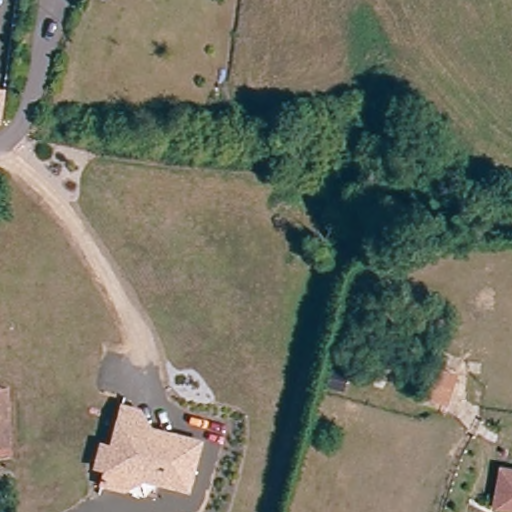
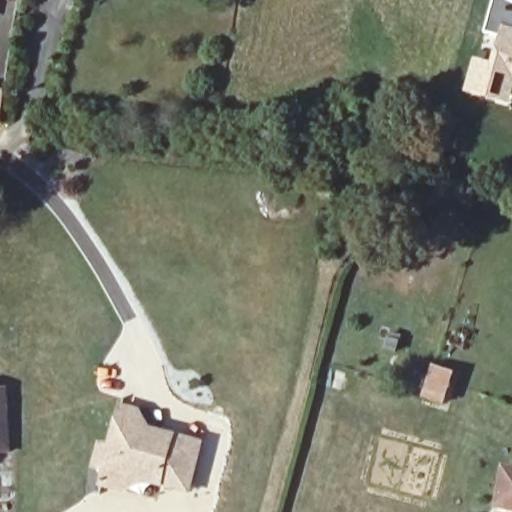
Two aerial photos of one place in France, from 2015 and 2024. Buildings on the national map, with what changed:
new [(511,108),(465,94),(475,58),(492,64),(500,37),(486,33),(496,0),(509,0),(512,1),(512,104),(511,108)]
unchanged [(0,131),(0,96),(17,98),(13,129),(3,131),(0,131)]
unchanged [(352,358),(342,389),(328,386),(339,354),(352,358)]
unchanged [(447,406),(421,399),(429,364),(457,372),(447,406)]
unchanged [(190,493),(143,482),(125,494),(98,488),(102,473),(92,469),(98,443),(110,444),(120,403),(142,409),(151,427),(204,440),(190,493)]
unchanged [(498,506),(505,467),(512,468),(512,508),(498,506)]

